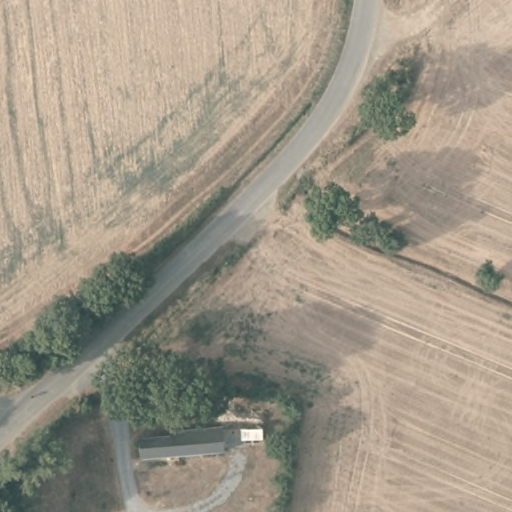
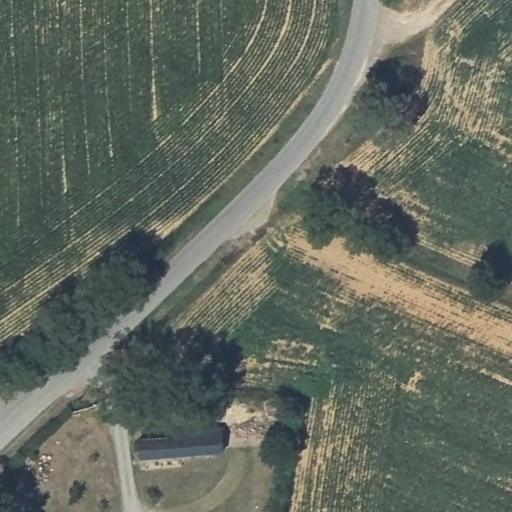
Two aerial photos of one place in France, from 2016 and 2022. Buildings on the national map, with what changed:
unchanged [(226,450),(142,458),(139,441),(171,440),(171,431),(224,426),(226,450)]

